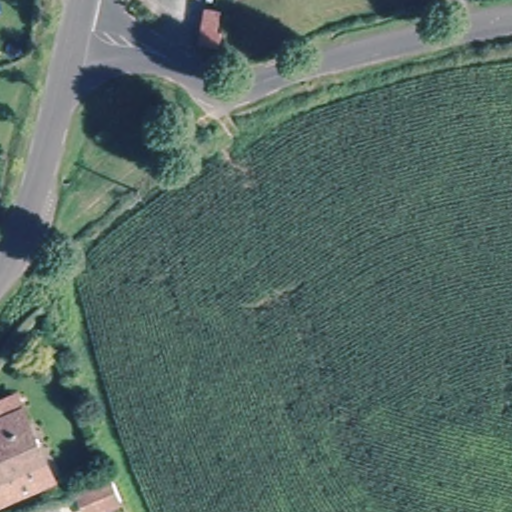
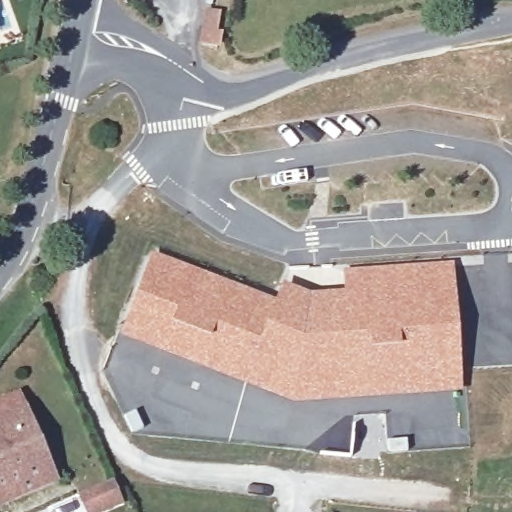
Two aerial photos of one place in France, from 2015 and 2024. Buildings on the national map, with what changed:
new [(275,302),(281,282),(311,294),(343,291),(341,271),(455,262),(461,393),(295,406),(120,337),(153,254),(275,302)]
unchanged [(0,437),(0,402),(19,393),(32,424),(26,426),(50,480),(0,502),(0,437)]
unchanged [(96,512),(89,512),(81,493),(116,478),(125,500),(96,512)]

